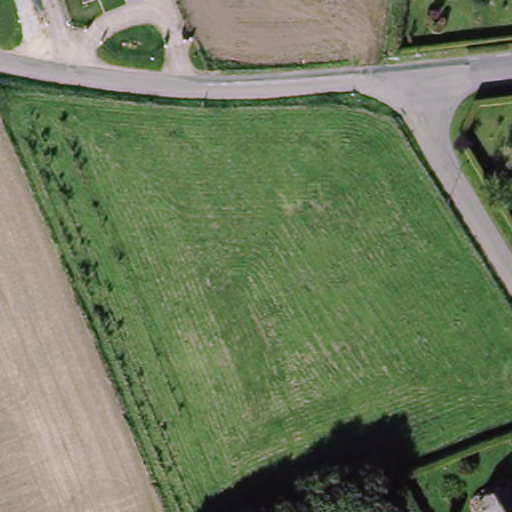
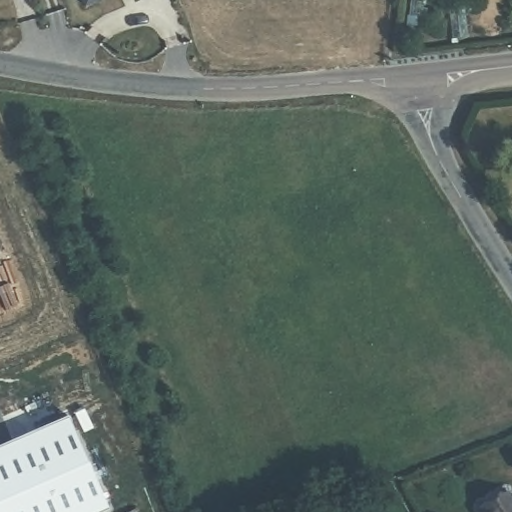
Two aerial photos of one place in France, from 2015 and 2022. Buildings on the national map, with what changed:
unchanged [(81,0),(97,0),(83,5),(81,0)]
new [(107,512),(0,512),(0,447),(67,417),(108,511),(107,512)]
unchanged [(502,490),(512,509),(512,512),(478,512),(474,505),(502,490)]

